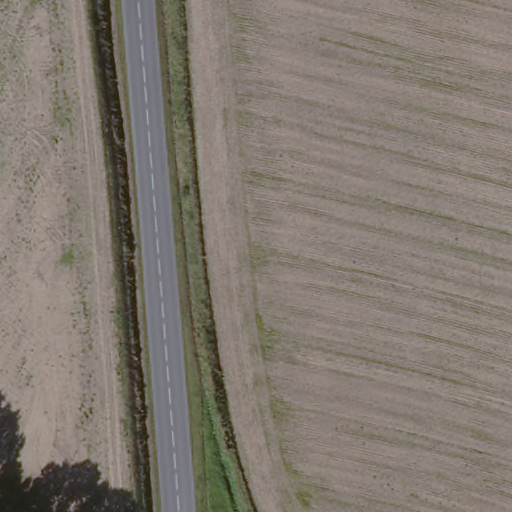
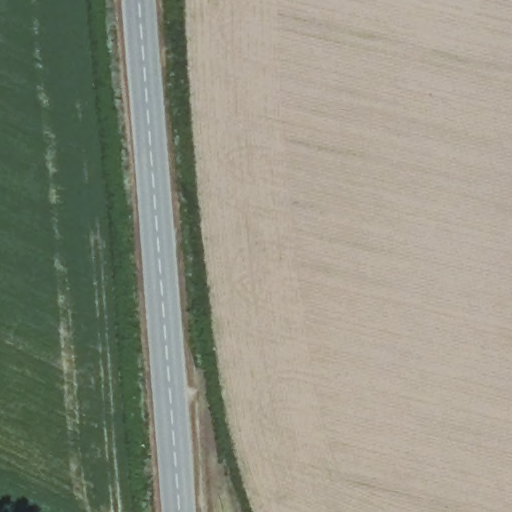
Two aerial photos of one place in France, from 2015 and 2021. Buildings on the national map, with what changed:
[]

